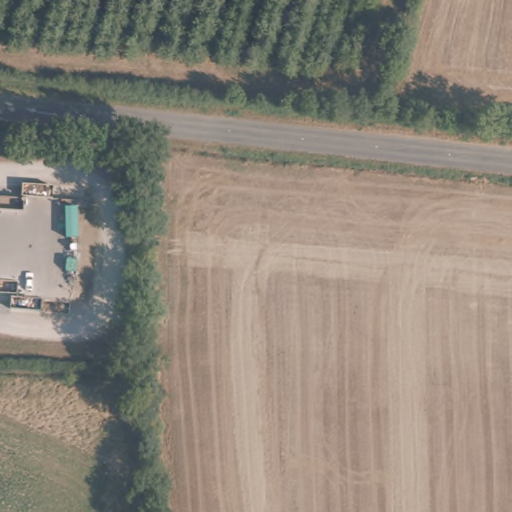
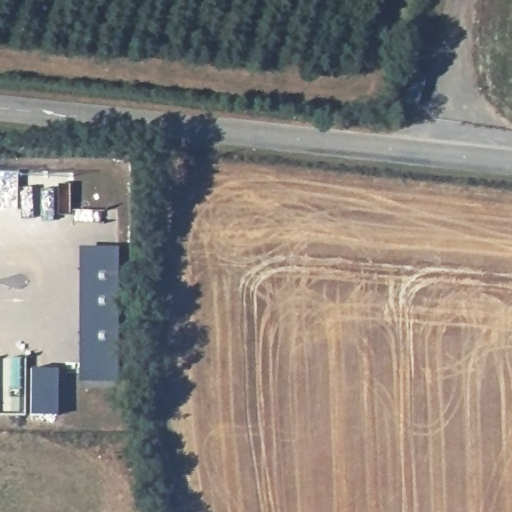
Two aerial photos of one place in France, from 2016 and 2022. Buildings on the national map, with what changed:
new [(78,246),(123,246),(123,381),(78,381),(78,246)]
new [(27,367),(58,368),(58,415),(26,415),(27,367)]

